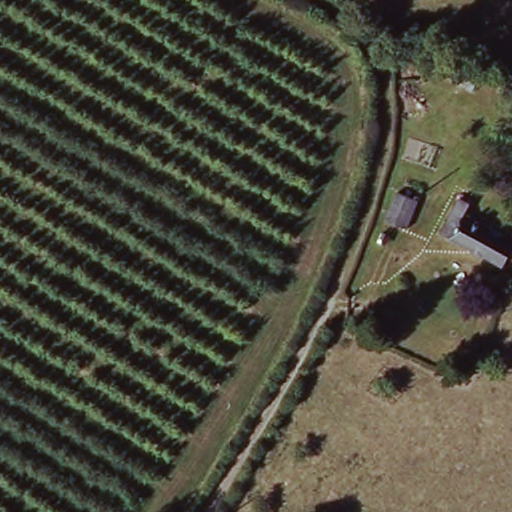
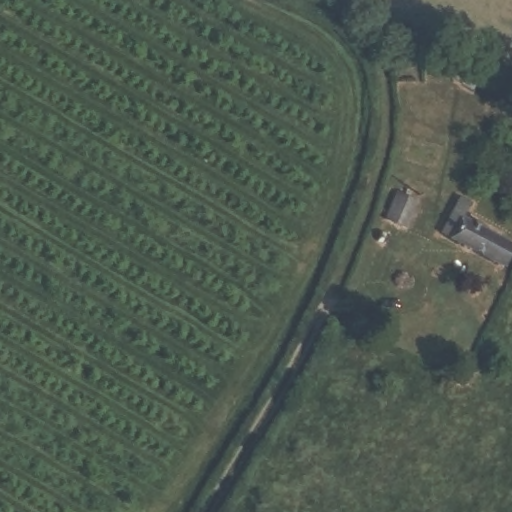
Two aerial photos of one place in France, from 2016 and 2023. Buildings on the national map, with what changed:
unchanged [(396,192),(413,200),(403,229),(386,222),(396,192)]
unchanged [(457,198),(471,204),(464,219),(512,245),(512,250),(504,264),(441,232),(457,198)]

